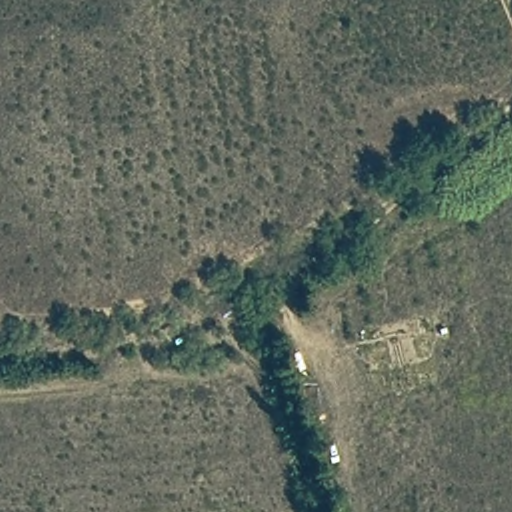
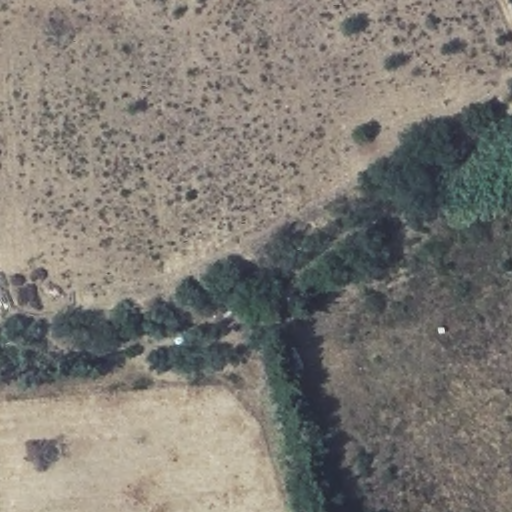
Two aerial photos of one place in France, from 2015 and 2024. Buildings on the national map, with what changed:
unchanged [(285,320),(262,326),(257,302),(280,297),(285,320)]

